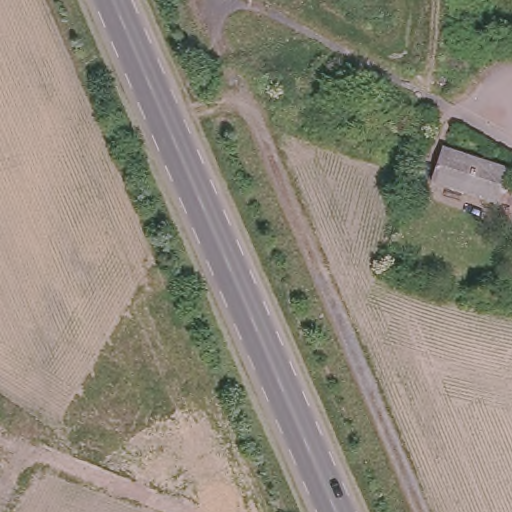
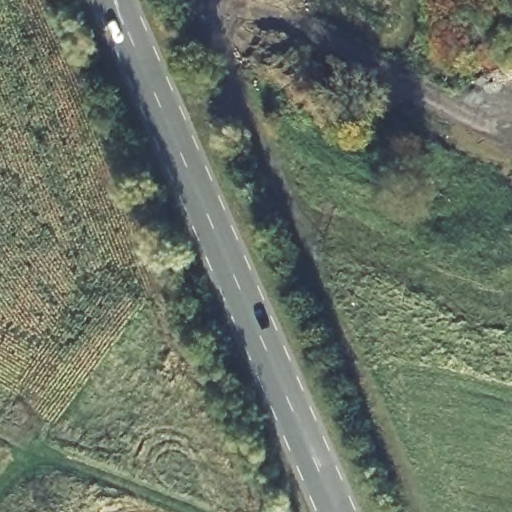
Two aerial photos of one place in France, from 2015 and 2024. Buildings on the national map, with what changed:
demolished [(466,194),(432,184),(443,149),(477,160),(466,194)]
demolished [(477,160),(511,170),(499,204),(466,194),(477,160)]

